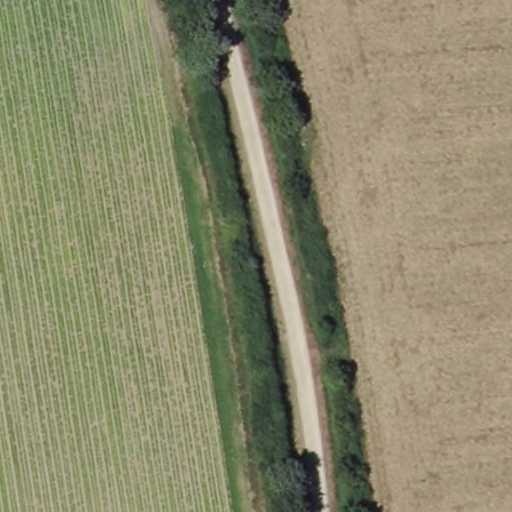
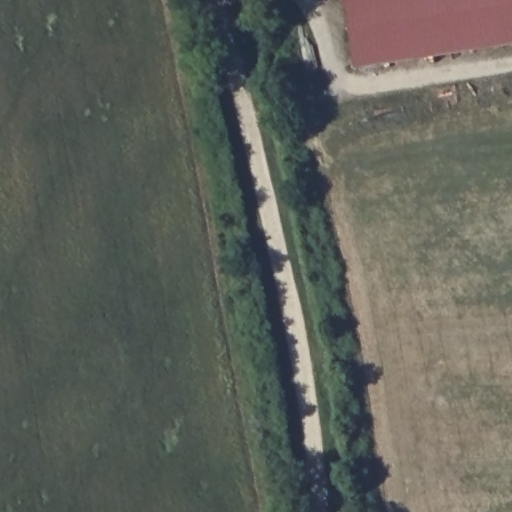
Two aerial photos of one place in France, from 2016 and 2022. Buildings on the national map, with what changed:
new [(342,0),(512,0),(512,44),(352,69),(342,0)]

